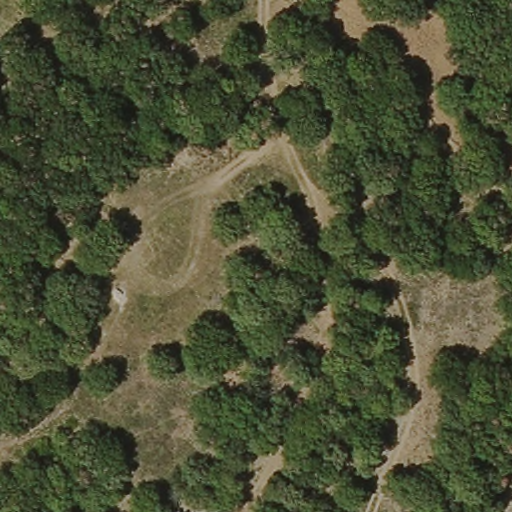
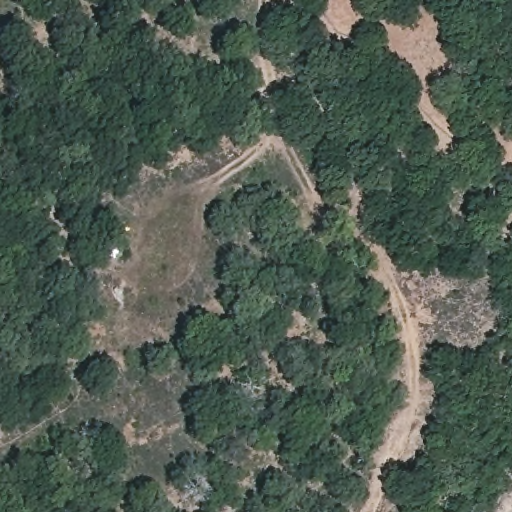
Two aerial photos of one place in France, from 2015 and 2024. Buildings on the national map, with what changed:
[]

